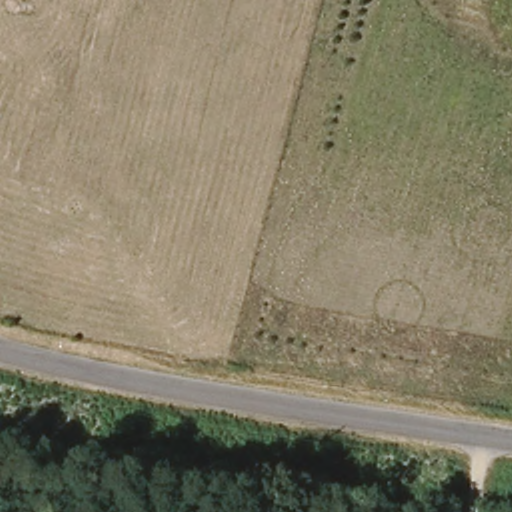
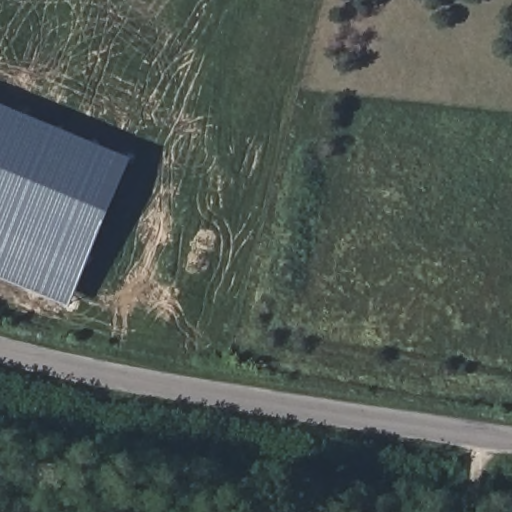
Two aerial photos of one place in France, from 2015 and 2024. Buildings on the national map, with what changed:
new [(0,276),(0,102),(133,156),(71,305),(0,276)]

